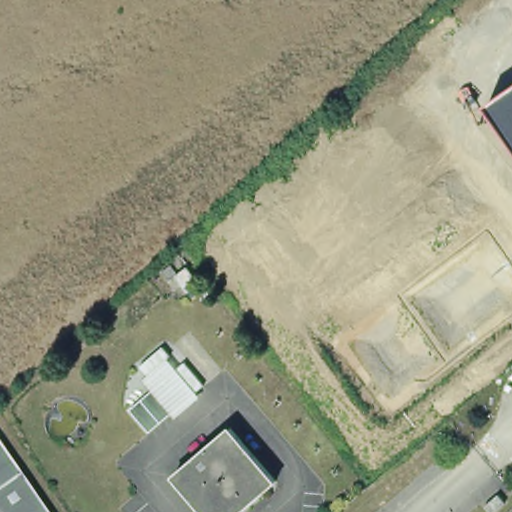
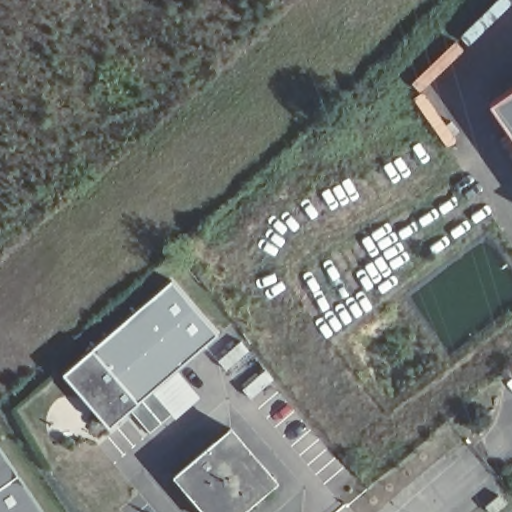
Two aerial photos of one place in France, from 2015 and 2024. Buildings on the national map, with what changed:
new [(512,90),(512,138),(490,106),(512,90)]
new [(173,279),(220,333),(109,428),(62,373),(173,279)]
unchanged [(130,409),(142,399),(155,389),(174,412),(162,422),(150,432),(130,409)]
unchanged [(226,423),(271,476),(230,512),(205,512),(170,471),(226,423)]
unchanged [(13,474),(0,483),(0,455),(13,474)]
unchanged [(0,512),(0,483),(13,474),(39,512),(0,512)]
unchanged [(494,512),(490,512),(485,506),(499,495),(506,503),(494,512)]

